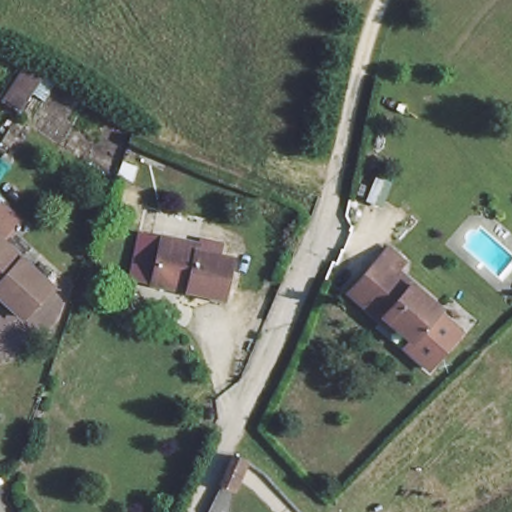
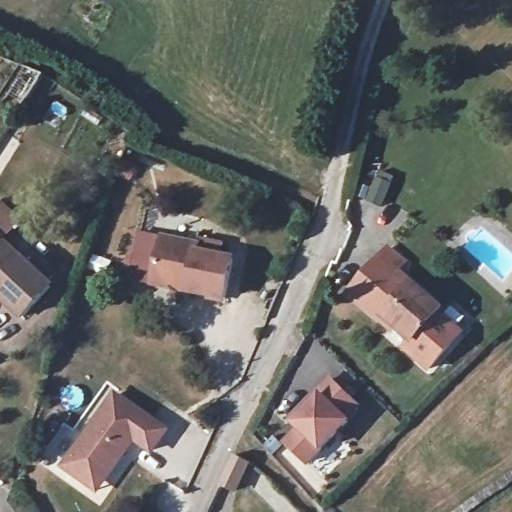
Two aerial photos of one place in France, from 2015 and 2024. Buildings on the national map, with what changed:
unchanged [(0,233),(0,202),(16,215),(0,233)]
unchanged [(128,281),(135,234),(154,238),(189,242),(189,249),(225,254),(220,293),(185,288),(150,284),(128,281)]
unchanged [(12,321),(0,309),(0,243),(44,281),(12,321)]
unchanged [(384,244),(399,258),(391,266),(434,307),(431,310),(454,331),(421,366),(397,344),(404,337),(377,312),(367,324),(336,296),(384,244)]
new [(296,428),(291,424),(324,392),(319,386),(330,374),(347,390),(336,401),(355,420),(326,451),(324,448),(309,465),(283,442),(296,428)]
new [(113,390),(170,429),(152,455),(134,443),(98,495),(60,467),(113,390)]
unchanged [(229,462),(245,470),(230,500),(215,493),(229,462)]

